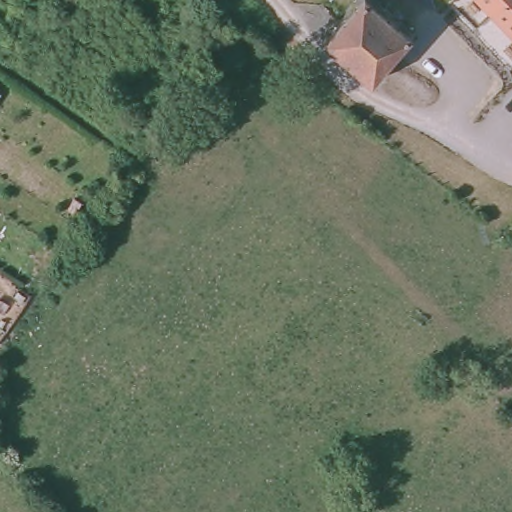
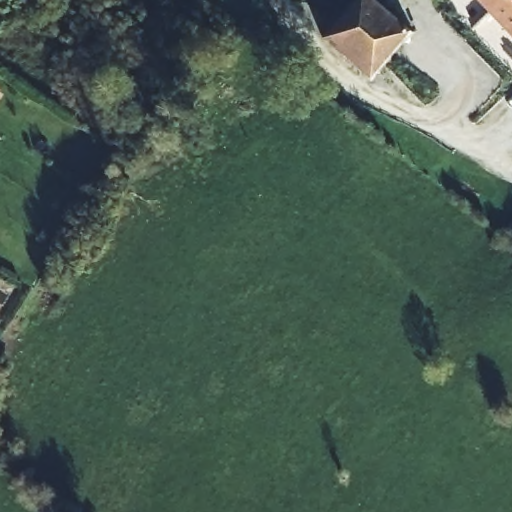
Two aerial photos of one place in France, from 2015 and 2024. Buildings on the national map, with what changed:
unchanged [(368,0),(407,32),(368,76),(321,38),(353,0),(368,0)]
unchanged [(503,24),(476,0),(512,0),(512,32),(503,24)]

